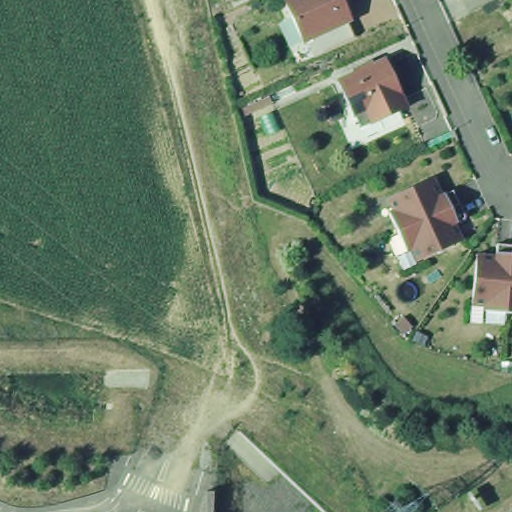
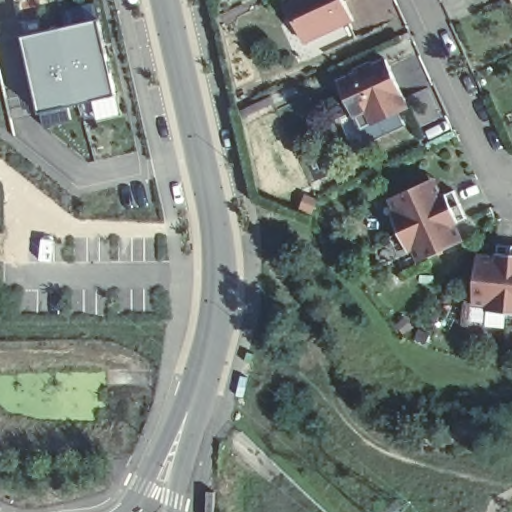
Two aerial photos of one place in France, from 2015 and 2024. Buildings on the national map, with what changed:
unchanged [(347,10),(343,12),(351,28),(309,47),(302,31),(299,32),(285,0),(343,0),(347,10)]
new [(93,21),(109,96),(34,111),(18,36),(93,21)]
unchanged [(408,92),(400,97),(391,101),(380,105),(374,92),(355,101),(349,87),(339,66),(386,44),(408,92)]
unchanged [(355,101),(374,92),(380,105),(391,100),(391,101),(400,97),(406,110),(354,134),(335,92),(349,87),(355,101)]
unchanged [(457,243),(417,261),(412,249),(407,251),(390,212),(395,210),(389,198),(429,180),(435,177),(442,195),(454,191),(467,217),(455,223),(462,240),(457,243)]
unchanged [(485,311),(486,306),(472,305),(477,262),(477,255),(497,257),(498,245),(512,246),(512,313),(485,311)]

